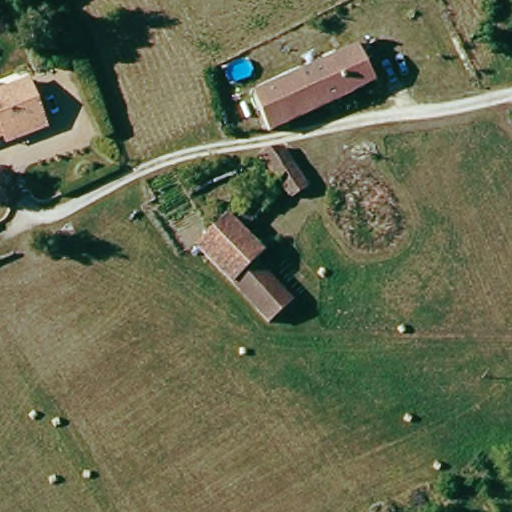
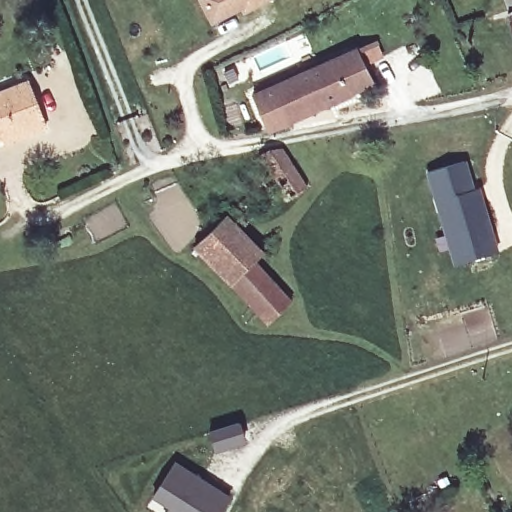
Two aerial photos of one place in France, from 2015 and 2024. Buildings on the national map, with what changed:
new [(242,10),(212,26),(199,0),(274,0),(245,15),(242,10)]
unchanged [(372,49),(384,78),(365,86),(280,121),(266,90),(372,49)]
unchanged [(46,128),(0,145),(0,93),(29,82),(46,128)]
unchanged [(272,172),(260,153),(280,145),(305,191),(290,202),(283,192),(237,227),(256,252),(248,265),(285,308),(265,327),(190,244),(272,172)]
new [(497,252),(453,264),(425,174),(465,162),(474,192),(478,190),(497,252)]
new [(232,498),(224,512),(166,512),(167,511),(150,500),(175,462),(232,498)]

